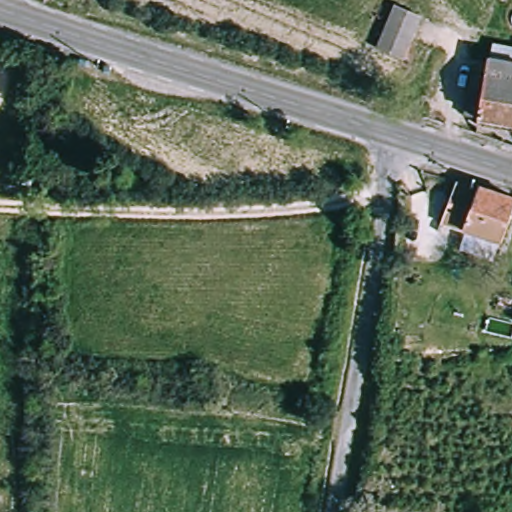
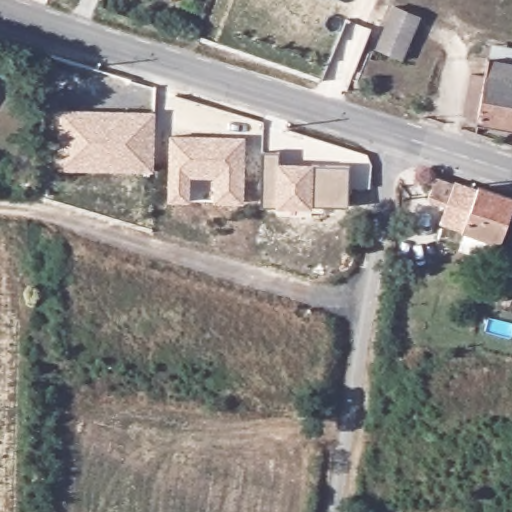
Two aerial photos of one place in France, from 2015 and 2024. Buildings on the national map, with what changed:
unchanged [(418,19),(402,60),(375,50),(389,8),(418,19)]
unchanged [(474,75),(491,76),(494,58),(512,60),(512,124),(486,120),(468,116),(474,75)]
new [(154,171),(58,169),(59,109),(155,111),(154,171)]
new [(243,202),(213,202),(214,178),(191,177),(190,201),(168,200),(169,135),(245,136),(243,202)]
new [(279,163),(349,165),(348,208),(261,206),(262,150),(279,151),(279,163)]
unchanged [(464,231),(439,222),(453,185),(477,193),(479,188),(512,199),(512,214),(508,227),(502,245),(464,231)]

